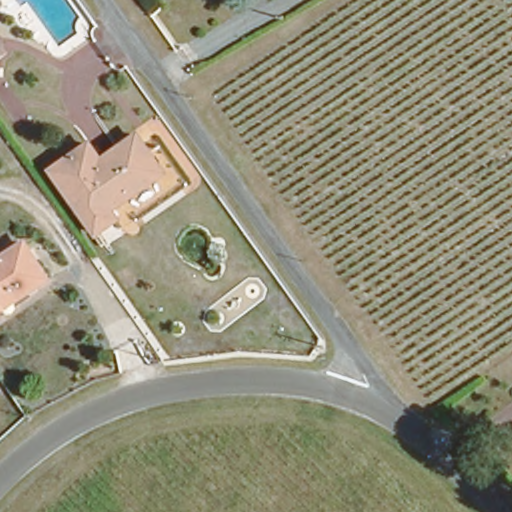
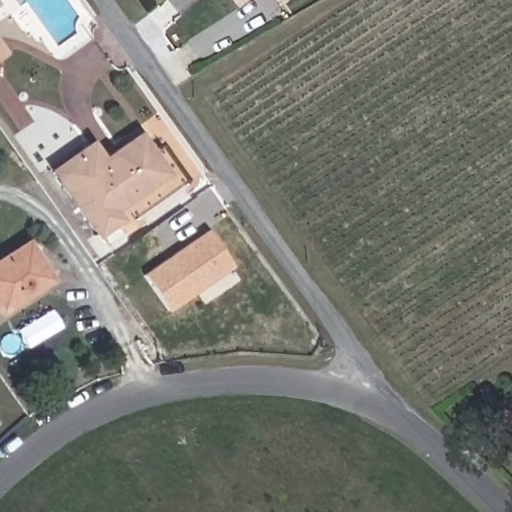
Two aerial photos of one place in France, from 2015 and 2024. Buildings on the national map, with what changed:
new [(236,0),(253,0),(243,9),(236,0)]
new [(278,0),(292,0),(283,7),(278,0)]
unchanged [(0,50),(0,34),(8,45),(0,50)]
unchanged [(98,231),(51,166),(89,139),(104,157),(137,132),(148,145),(145,150),(160,169),(121,199),(118,195),(110,201),(120,214),(98,231)]
new [(205,230),(232,268),(168,313),(141,275),(205,230)]
unchanged [(0,294),(0,247),(35,232),(51,270),(0,294)]

